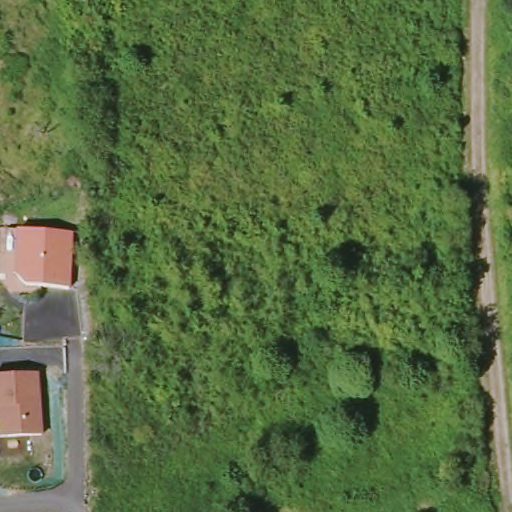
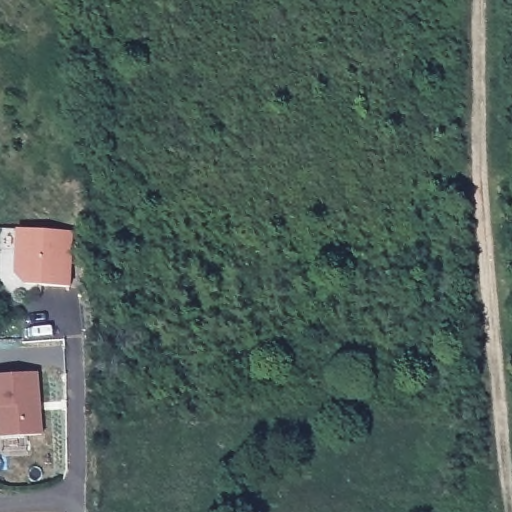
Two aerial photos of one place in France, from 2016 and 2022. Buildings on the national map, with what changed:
unchanged [(28,284),(17,271),(20,230),(76,233),(77,285),(28,284)]
unchanged [(0,439),(0,433),(0,377),(40,373),(44,436),(0,439)]

